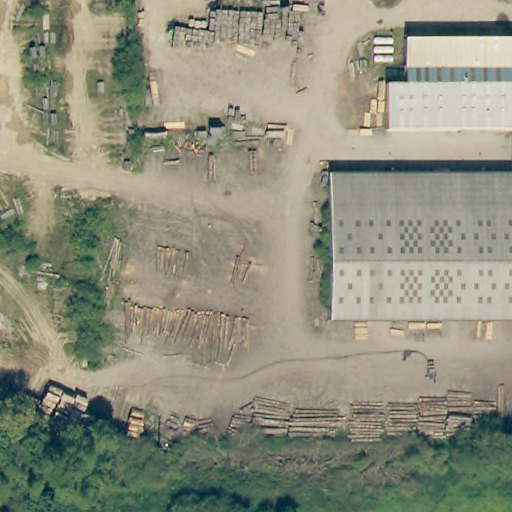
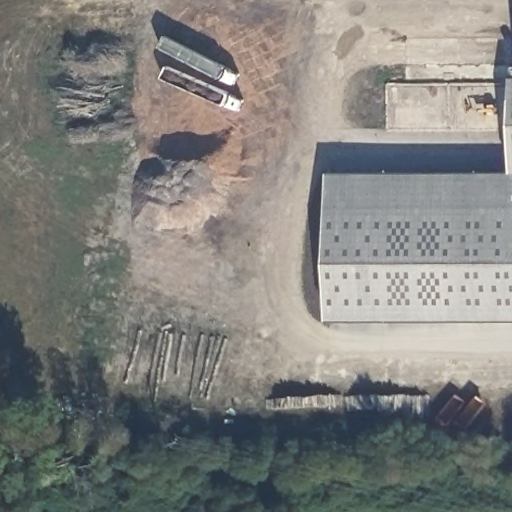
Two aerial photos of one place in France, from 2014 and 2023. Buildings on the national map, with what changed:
demolished [(409,37),(512,37),(512,130),(481,130),(392,129),(392,83),(407,83),(409,37)]
unchanged [(331,205),(330,171),(512,169),(512,203),(441,203),(331,205)]
unchanged [(331,205),(441,203),(512,203),(512,316),(332,318),(331,205)]

